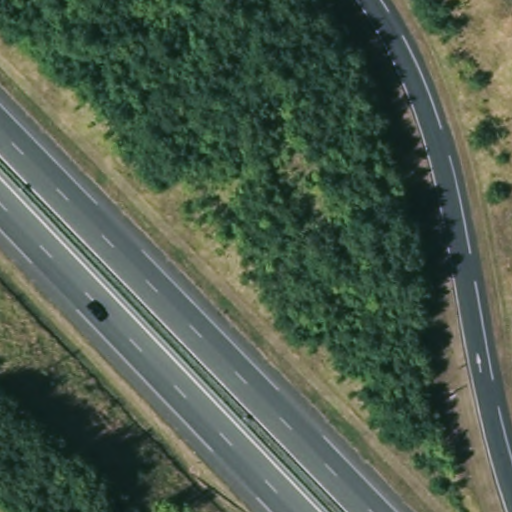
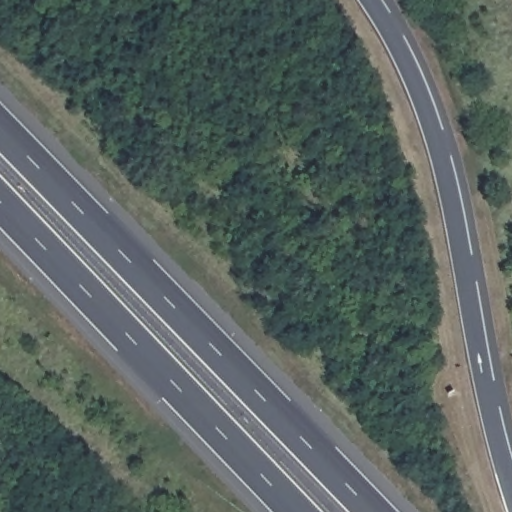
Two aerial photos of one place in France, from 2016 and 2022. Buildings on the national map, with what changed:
[]

